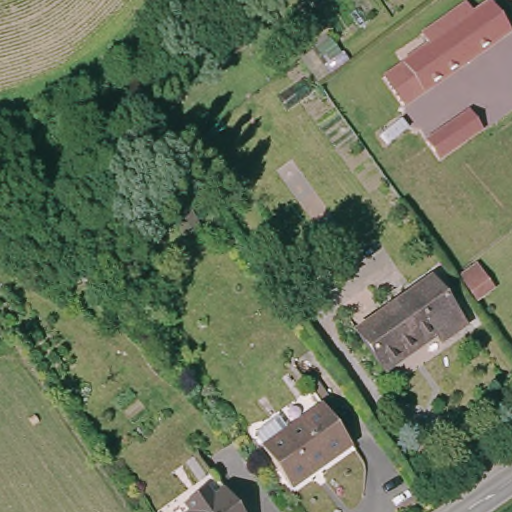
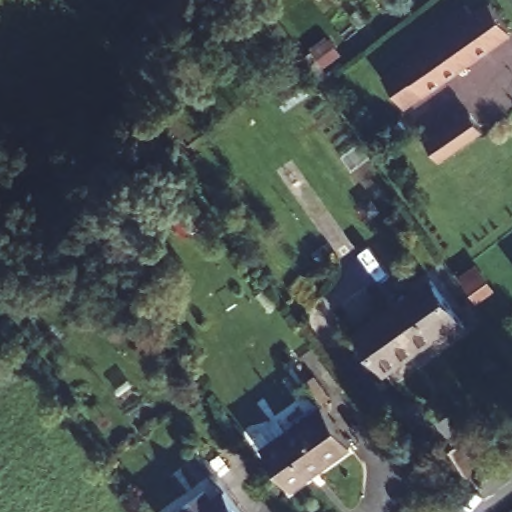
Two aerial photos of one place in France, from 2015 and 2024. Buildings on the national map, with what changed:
unchanged [(471,12),(488,1),(511,34),(422,96),(405,108),(382,76),(401,62),(427,45),(420,34),(465,2),(471,12)]
unchanged [(483,132),(440,161),(425,141),(468,112),(483,132)]
unchanged [(460,329),(438,343),(429,331),(375,368),(347,328),(403,291),(411,303),(433,288),(460,329)]
unchanged [(281,485),(256,445),(257,445),(251,435),(248,434),(251,427),(254,427),(275,414),(283,427),(319,404),(344,444),(318,462),(281,485)]
unchanged [(210,491),(218,502),(230,493),(242,512),(192,512),(188,506),(210,491)]

